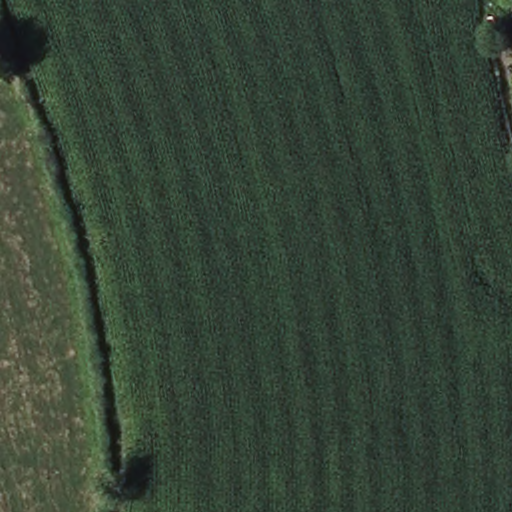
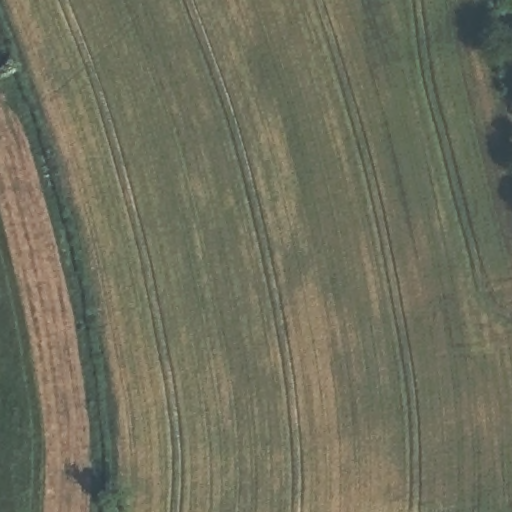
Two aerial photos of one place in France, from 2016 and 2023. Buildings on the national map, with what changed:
[]

